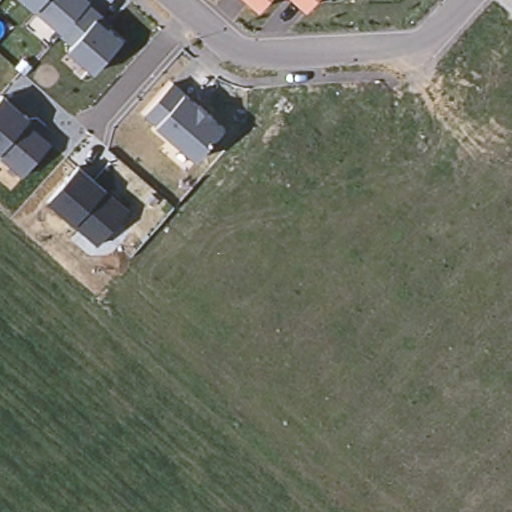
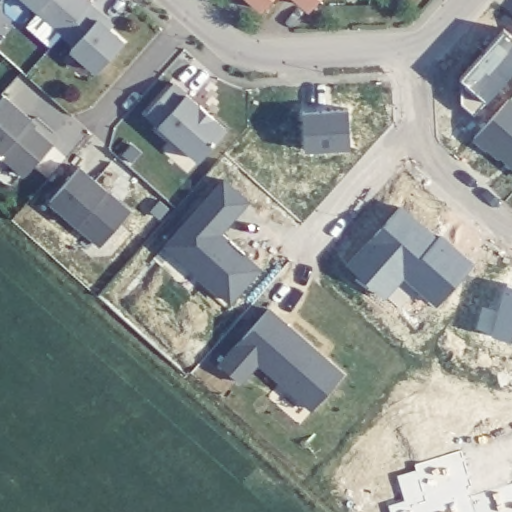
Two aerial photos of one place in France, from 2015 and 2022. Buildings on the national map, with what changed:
unchanged [(104,11),(100,18),(126,42),(95,73),(70,51),(75,45),(23,0),(91,0),(104,11)]
unchanged [(262,15),(246,0),(277,0),(262,15)]
unchanged [(309,11),(296,0),(320,0),(309,11)]
new [(512,76),(475,117),(464,107),(462,81),(506,34),(512,40),(512,76)]
unchanged [(230,129),(199,164),(147,114),(178,82),(230,129)]
unchanged [(40,122),(37,127),(54,142),(25,178),(0,156),(0,102),(6,95),(40,122)]
new [(497,154),(488,145),(486,147),(473,135),(507,98),(512,103),(512,164),(499,153),(497,154)]
new [(349,113),(350,151),(305,153),(303,115),(349,113)]
unchanged [(131,209),(101,246),(50,202),(81,167),(131,209)]
new [(223,179),(251,203),(222,235),(261,272),(229,307),(164,248),(223,179)]
new [(400,208),(437,239),(441,236),(474,265),(439,308),(405,280),(386,301),(346,266),(400,208)]
new [(512,343),(492,337),(505,288),(512,290),(512,343)]
new [(269,310),(344,376),(313,412),(259,368),(241,384),(221,364),(269,310)]
new [(471,489),(468,489),(470,497),(512,486),(512,512),(390,512),(389,507),(405,500),(399,476),(417,471),(415,464),(463,451),(471,489)]

